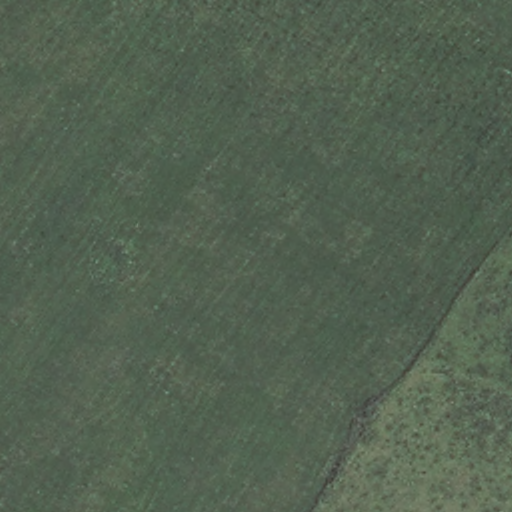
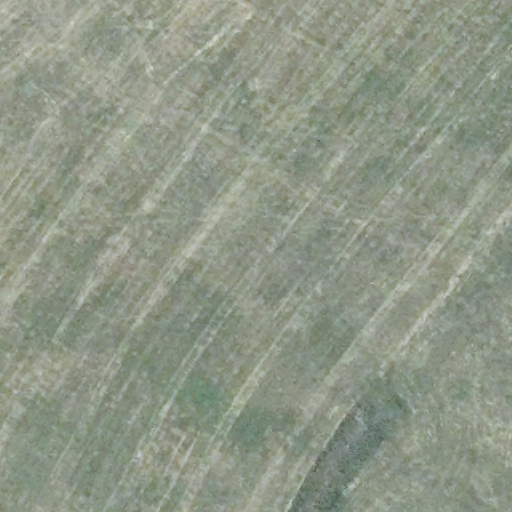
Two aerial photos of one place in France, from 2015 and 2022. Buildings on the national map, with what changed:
[]

